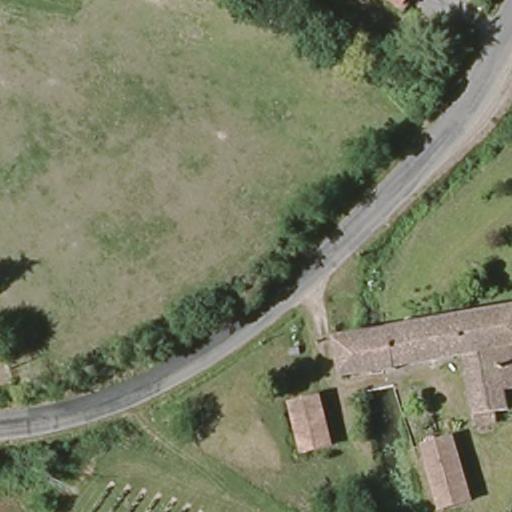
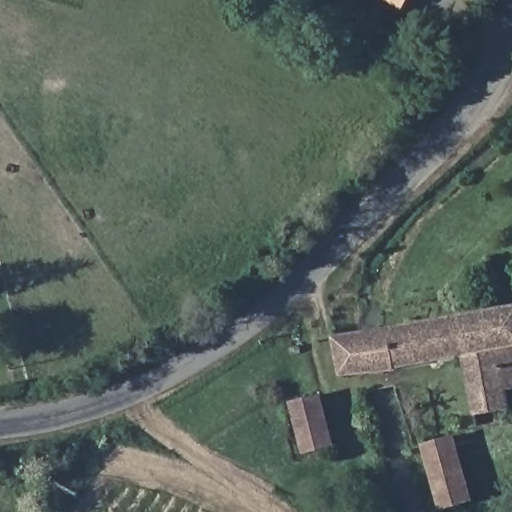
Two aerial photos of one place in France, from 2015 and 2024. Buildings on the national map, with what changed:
unchanged [(391,0),(404,0),(400,6),(391,0)]
unchanged [(385,327),(512,301),(512,405),(493,407),(493,421),(474,424),(465,355),(391,366),(391,375),(361,379),(337,382),(330,336),(348,332),(385,327)]
unchanged [(323,398),(331,448),(301,451),(295,401),(323,398)]
unchanged [(456,435),(469,500),(439,503),(430,472),(425,441),(456,435)]

